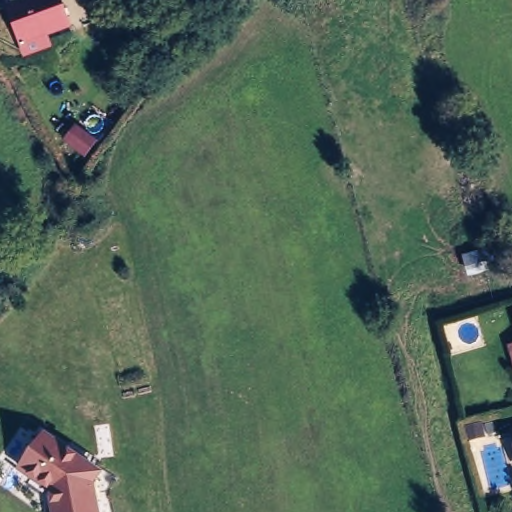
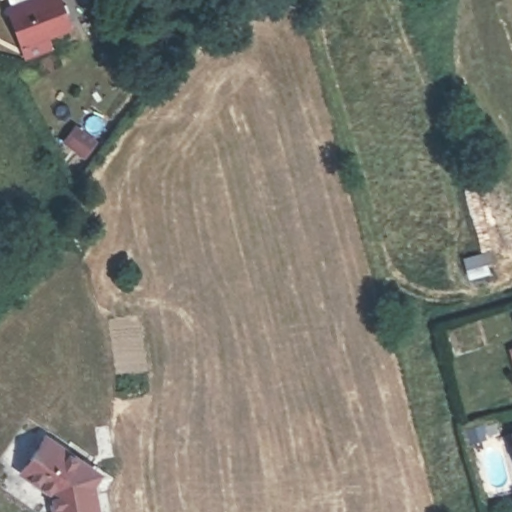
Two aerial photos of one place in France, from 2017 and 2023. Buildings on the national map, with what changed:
unchanged [(14,10),(11,0),(62,0),(72,29),(22,47),(10,12),(14,10)]
unchanged [(92,154),(81,170),(64,157),(75,141),(92,154)]
unchanged [(469,444),(467,432),(482,429),(484,442),(469,444)]
unchanged [(94,470),(87,479),(92,512),(52,512),(48,487),(17,468),(41,434),(94,470)]

